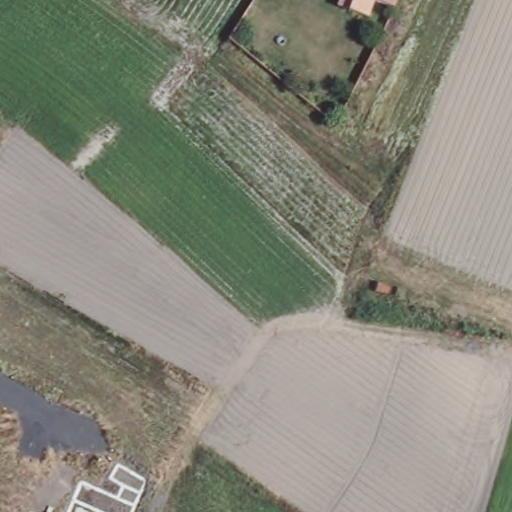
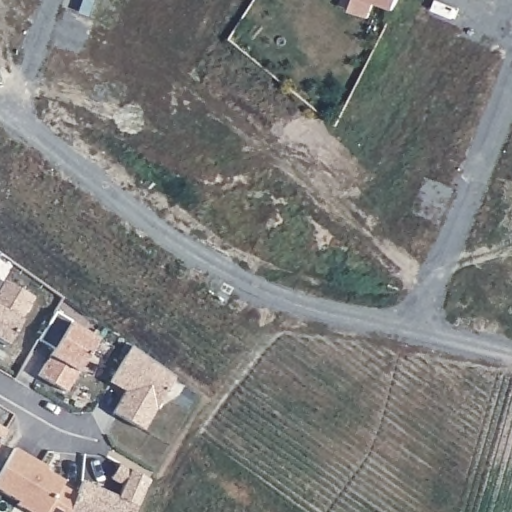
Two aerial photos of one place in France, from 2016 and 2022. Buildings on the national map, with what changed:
unchanged [(347,0),(404,0),(400,11),(381,4),(375,20),(356,13),(344,8),(347,0)]
new [(4,281),(34,298),(6,345),(0,342),(0,281),(3,283),(4,281)]
new [(54,349),(39,341),(55,312),(72,321),(70,324),(97,339),(67,392),(39,375),(54,349)]
new [(110,383),(115,375),(132,346),(175,377),(144,430),(113,412),(125,391),(110,383)]
new [(0,440),(0,423),(7,428),(0,440)]
new [(48,468),(46,471),(64,481),(62,486),(77,495),(69,512),(30,512),(17,504),(19,502),(0,490),(0,474),(15,449),(48,468)]
new [(82,482),(119,498),(124,486),(111,478),(120,463),(150,481),(145,489),(135,512),(69,512),(77,495),(82,482)]

